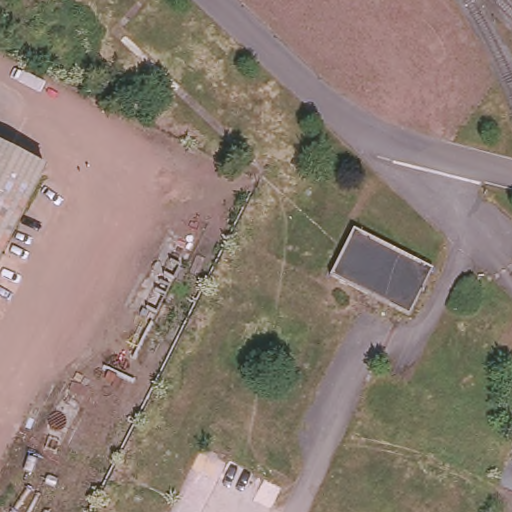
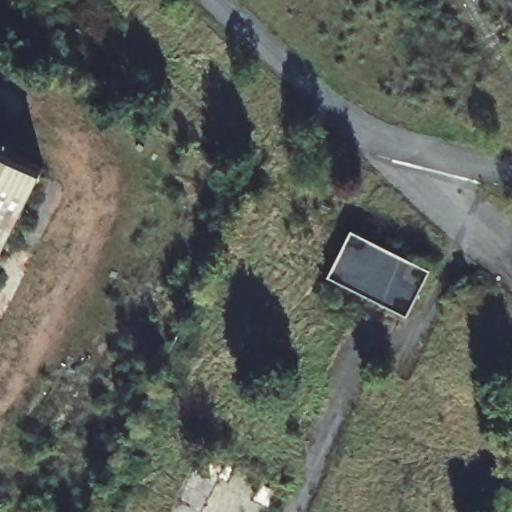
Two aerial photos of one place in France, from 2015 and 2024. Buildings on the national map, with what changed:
unchanged [(42,165),(0,248),(0,144),(42,165)]
unchanged [(431,270),(408,316),(330,277),(353,231),(431,270)]

